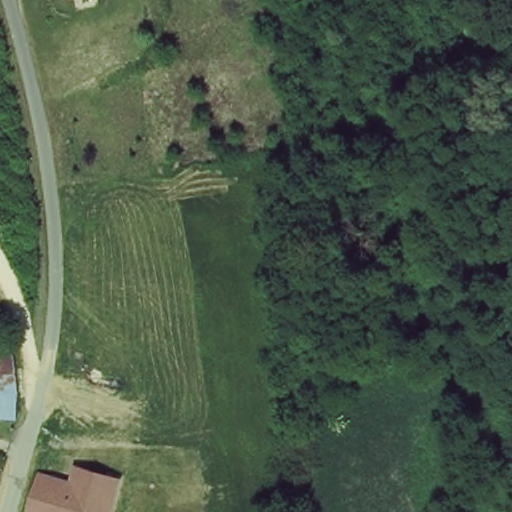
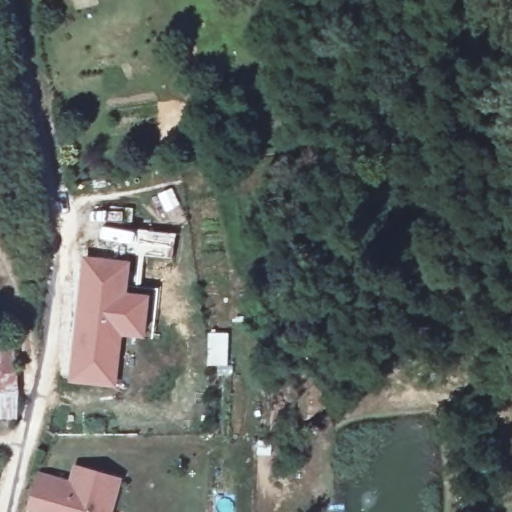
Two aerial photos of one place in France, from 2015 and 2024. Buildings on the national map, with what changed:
new [(119,334),(113,384),(73,379),(86,261),(126,265),(123,295),(146,298),(142,336),(119,334)]
unchanged [(22,398),(19,419),(0,417),(0,355),(14,350),(22,398)]
unchanged [(70,480),(75,464),(125,478),(116,512),(28,512),(38,471),(70,480)]

